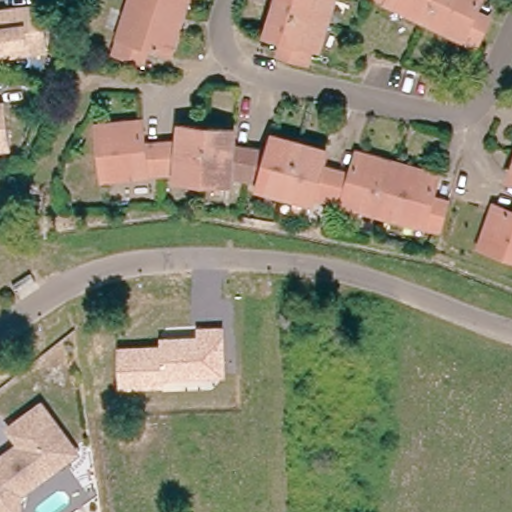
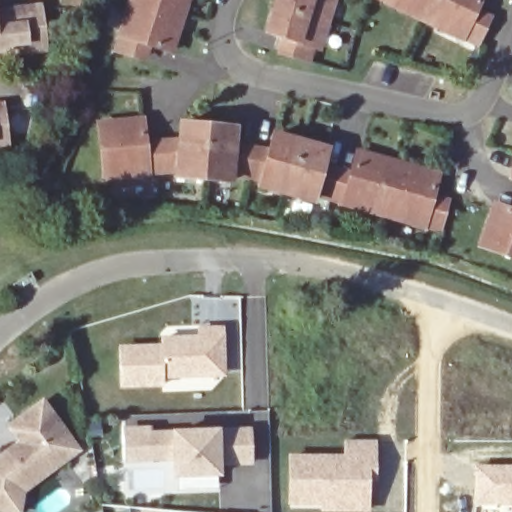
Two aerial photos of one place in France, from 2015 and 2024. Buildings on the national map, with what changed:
unchanged [(181,0),(165,52),(140,44),(135,59),(109,51),(125,0),(181,0)]
unchanged [(312,49),(307,47),(302,62),(277,54),(281,39),(262,33),(269,7),(272,0),(327,0),(321,22),(312,49)]
unchanged [(487,21),(476,45),(423,20),(380,0),(476,0),(471,12),(487,21)]
unchanged [(12,52),(11,44),(7,50),(0,50),(0,11),(4,11),(40,7),(44,40),(45,48),(12,52)]
unchanged [(2,106),(6,139),(7,147),(0,148),(0,106),(2,106)]
unchanged [(234,130),(232,149),(250,152),(267,155),(273,136),(298,142),(326,151),(321,170),(335,174),(350,177),(357,153),(437,176),(430,201),(446,205),(438,231),(313,196),(312,201),(259,187),(261,181),(252,180),(230,176),(230,182),(175,177),(176,171),(161,172),(104,177),(98,125),(141,121),(142,147),(179,144),(180,125),(234,130)]
unchanged [(512,159),(512,181),(505,179),(512,159)]
unchanged [(490,206),(512,214),(512,259),(475,246),(490,206)]
unchanged [(117,346),(161,345),(160,336),(197,335),(197,327),(224,326),(227,377),(166,381),(166,387),(119,389),(117,346)]
unchanged [(23,488),(20,510),(0,507),(0,458),(3,456),(24,441),(13,425),(46,402),(80,450),(48,473),(44,472),(27,486),(23,488)]
new [(152,428),(152,432),(172,432),(172,427),(221,426),(221,431),(251,429),(252,467),(221,468),(221,476),(173,477),(172,462),(125,463),(122,428),(152,428)]
new [(287,453),(342,453),(343,438),(378,439),(377,474),(372,473),(371,512),(321,512),(321,507),(287,507),(287,453)]
new [(512,464),(512,505),(473,505),(473,463),(512,464)]

